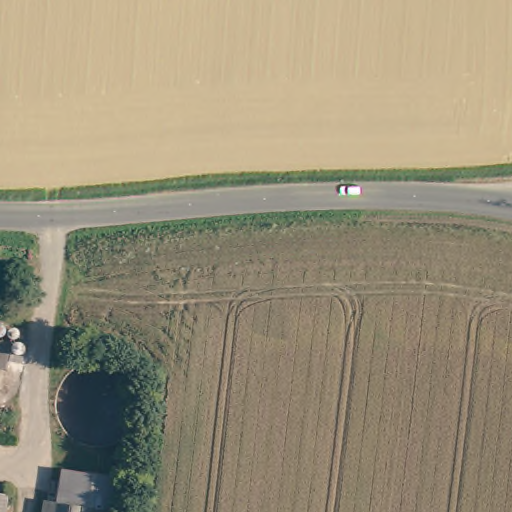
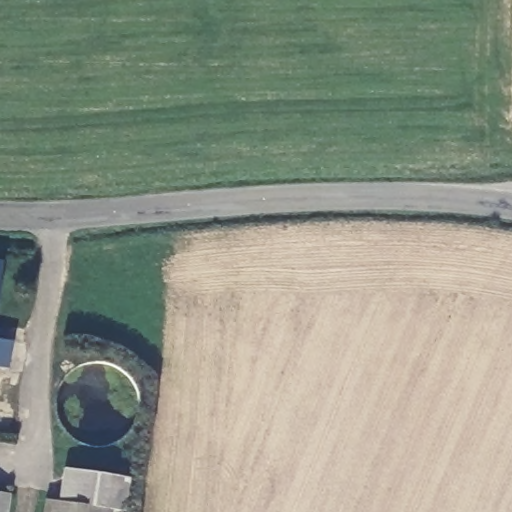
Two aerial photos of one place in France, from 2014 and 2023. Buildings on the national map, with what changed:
unchanged [(22,376),(0,369),(0,270),(17,273),(2,344),(30,350),(22,376)]
unchanged [(77,466),(141,478),(135,509),(120,506),(71,498),(77,466)]
unchanged [(8,493),(5,512),(0,512),(0,491),(8,493)]
unchanged [(56,495),(71,498),(120,506),(118,512),(52,512),(56,495)]

